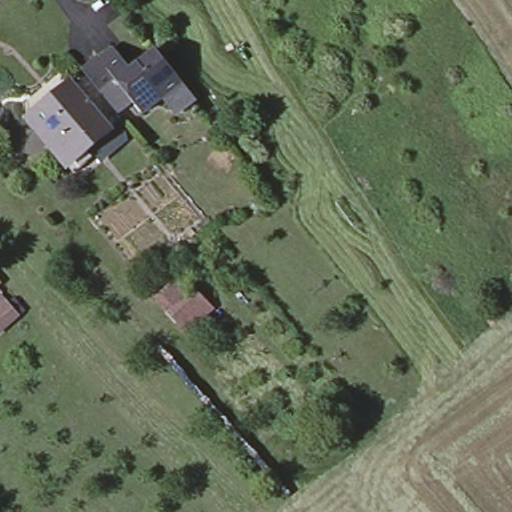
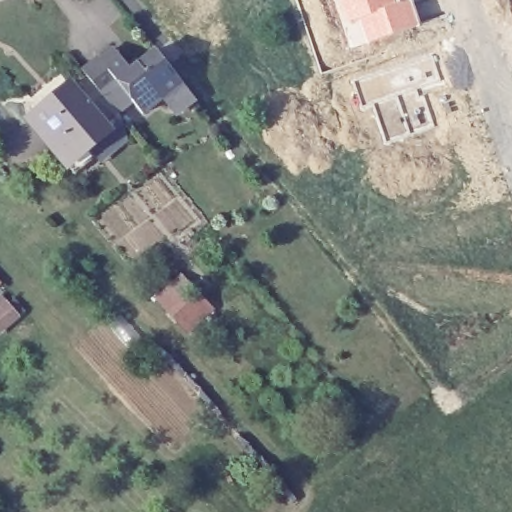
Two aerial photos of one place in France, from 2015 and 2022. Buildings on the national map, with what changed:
new [(409,0),(410,0),(418,25),(368,44),(361,21),(348,25),(341,0),(394,0),(395,5),(409,0)]
unchanged [(162,110),(148,92),(128,109),(103,78),(90,90),(72,67),(87,55),(89,58),(102,47),(120,68),(146,48),(168,77),(182,94),(162,110)]
new [(433,57),(439,82),(417,89),(420,101),(425,99),(433,127),(385,142),(375,105),(362,109),(354,82),(433,57)]
unchanged [(68,172),(24,118),(30,112),(67,81),(106,127),(84,146),(90,153),(68,172)]
unchanged [(159,304),(184,277),(212,303),(186,331),(159,304)]
unchanged [(5,282),(27,310),(0,333),(0,286),(5,282)]

